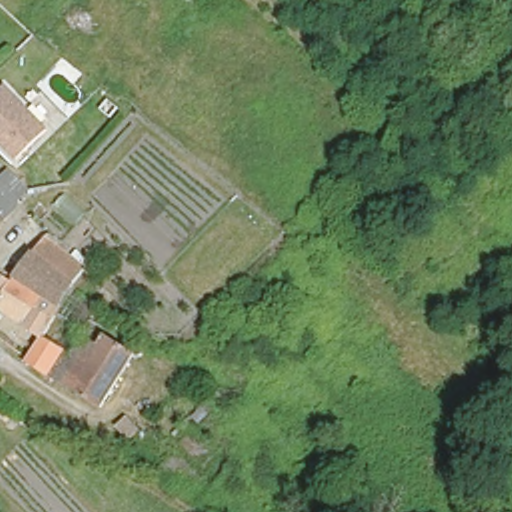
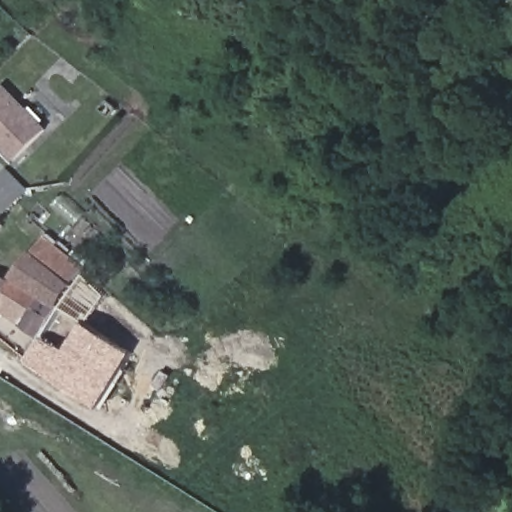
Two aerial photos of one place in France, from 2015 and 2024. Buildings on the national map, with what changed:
unchanged [(185,35),(174,25),(182,18),(174,14),(183,4),(199,18),(185,35)]
unchanged [(0,149),(0,93),(3,90),(45,135),(13,163),(0,149)]
unchanged [(28,188),(18,199),(13,204),(0,217),(0,175),(9,168),(28,188)]
unchanged [(0,223),(1,224),(0,224),(0,223)]
unchanged [(100,411),(24,364),(38,338),(0,313),(0,276),(10,284),(44,234),(86,267),(74,286),(55,315),(41,336),(66,354),(85,324),(135,354),(100,411)]

